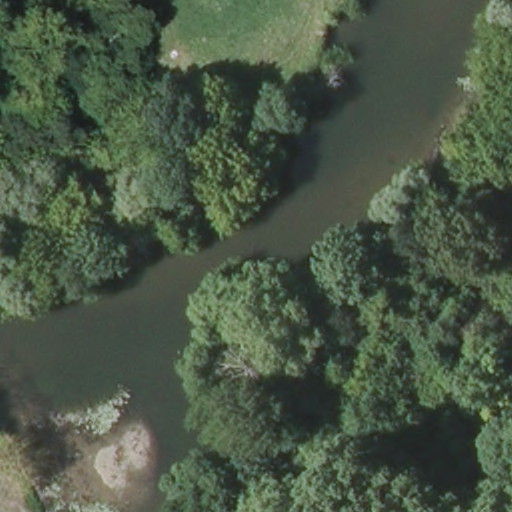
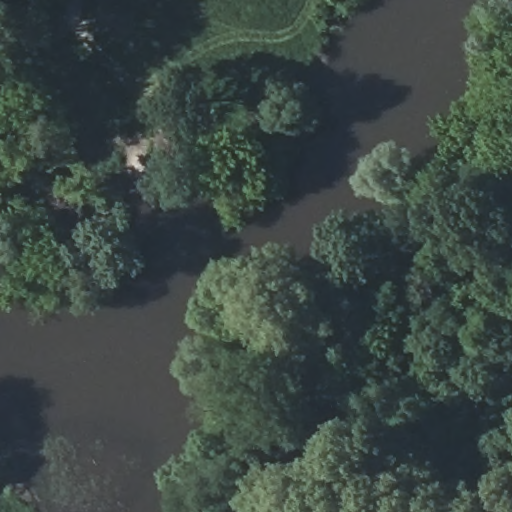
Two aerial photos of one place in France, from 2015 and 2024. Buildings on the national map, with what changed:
unchanged [(270,467),(298,475),(291,499),(264,491),(270,467)]

